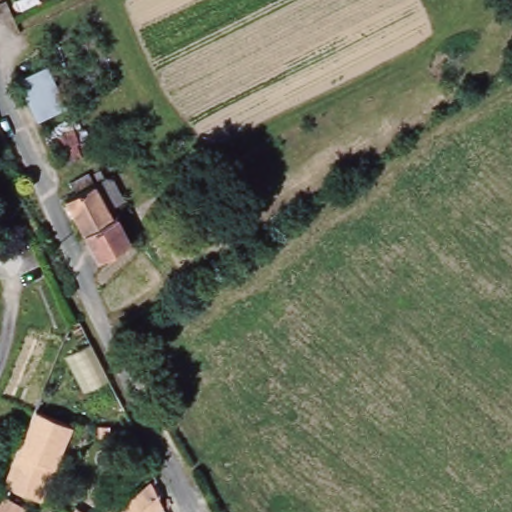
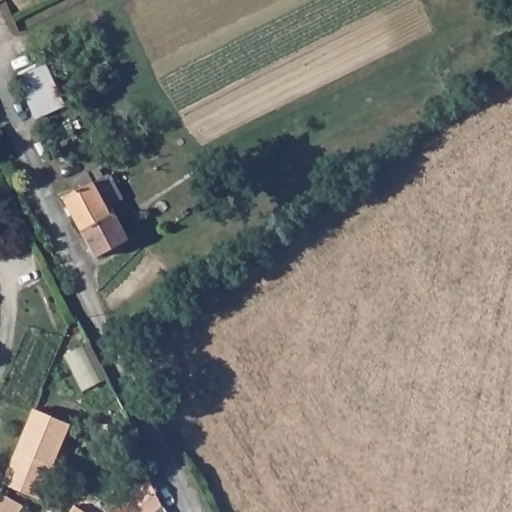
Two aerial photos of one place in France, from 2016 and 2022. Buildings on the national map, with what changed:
unchanged [(69,106),(41,119),(23,78),(50,65),(69,106)]
unchanged [(83,161),(87,173),(68,179),(52,136),(86,124),(95,152),(83,161)]
unchanged [(64,198),(109,174),(123,199),(107,208),(111,216),(82,232),(64,198)]
unchanged [(129,241),(96,258),(82,232),(111,216),(116,214),(129,241)]
unchanged [(71,425),(39,500),(3,485),(34,410),(71,425)]
unchanged [(155,478),(156,481),(166,503),(172,512),(120,512),(155,478)]
unchanged [(27,506),(24,512),(0,512),(0,500),(3,492),(27,506)]
unchanged [(79,504),(92,512),(74,512),(79,504)]

